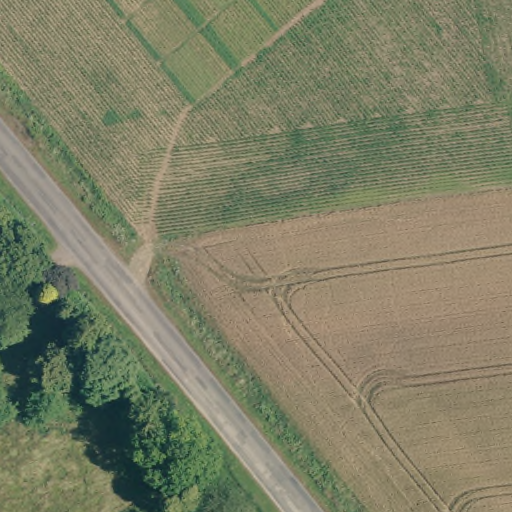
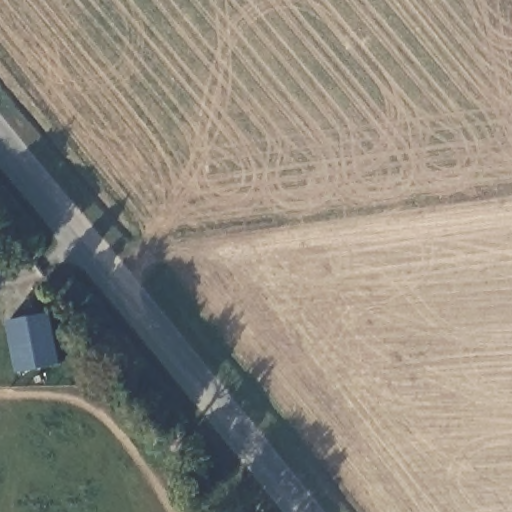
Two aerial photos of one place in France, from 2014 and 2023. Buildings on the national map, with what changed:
new [(16,373),(6,321),(51,312),(60,364),(16,373)]

